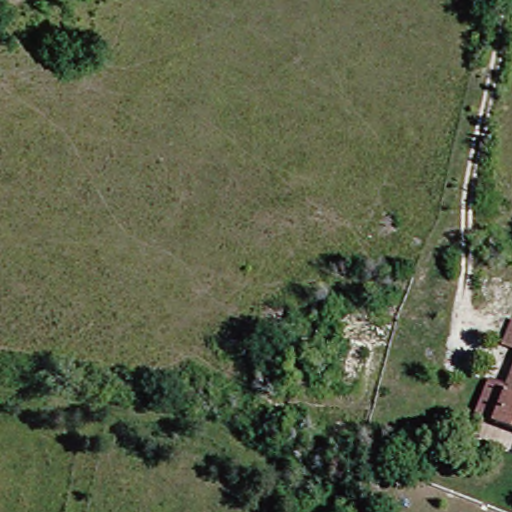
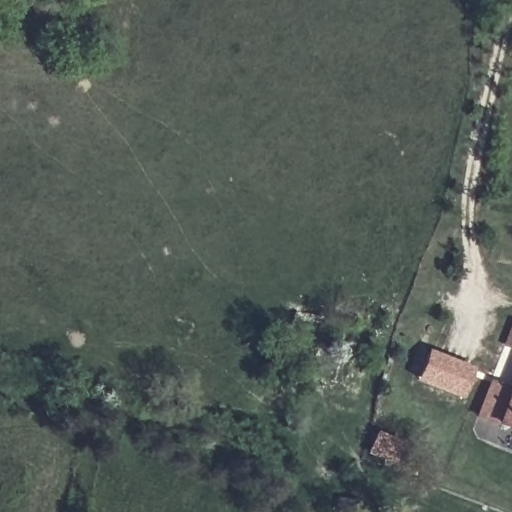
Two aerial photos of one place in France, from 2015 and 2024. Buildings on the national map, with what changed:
unchanged [(512,319),(512,344),(491,335),(499,314),(512,319)]
new [(414,381),(427,349),(474,368),(461,400),(414,381)]
unchanged [(481,416),(494,383),(511,388),(512,385),(512,427),(481,416)]

